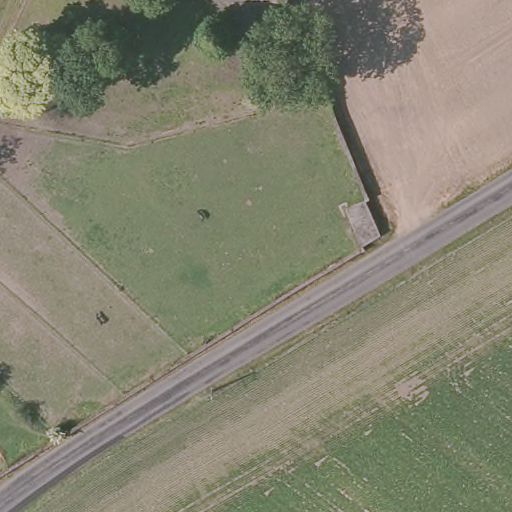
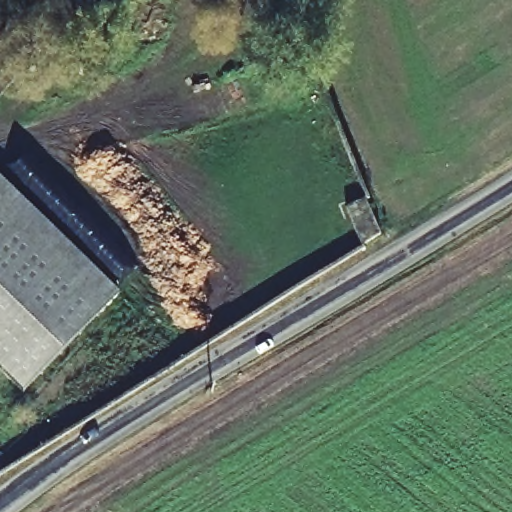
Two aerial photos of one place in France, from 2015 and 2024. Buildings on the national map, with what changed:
new [(0,369),(0,176),(120,292),(23,391),(0,369)]
unchanged [(370,197),(388,236),(362,252),(346,213),(369,196),(370,197)]

